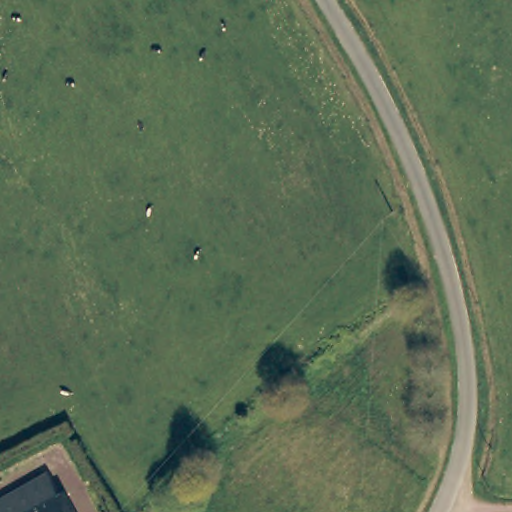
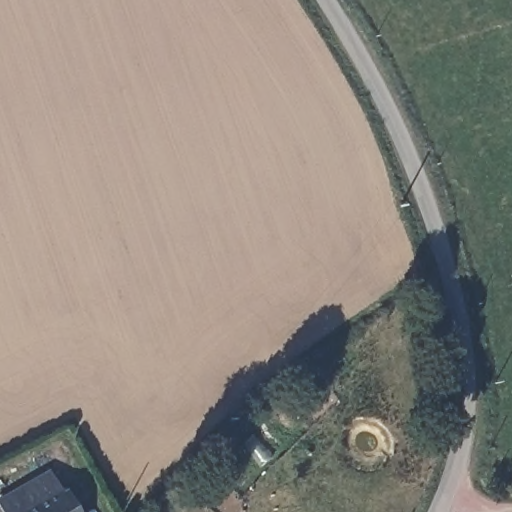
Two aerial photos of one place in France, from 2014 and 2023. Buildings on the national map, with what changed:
unchanged [(51,470),(60,488),(67,486),(82,512),(3,512),(0,506),(0,498),(51,470)]

